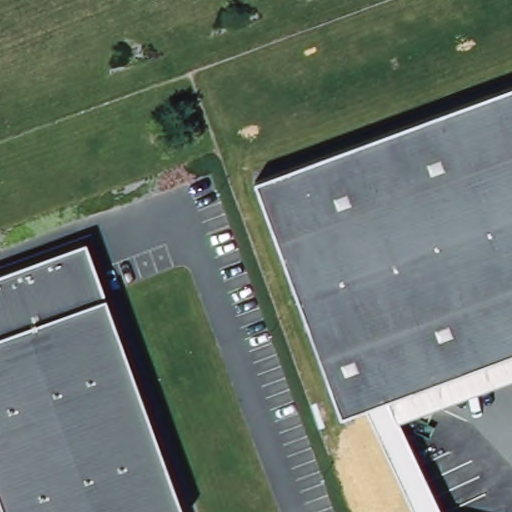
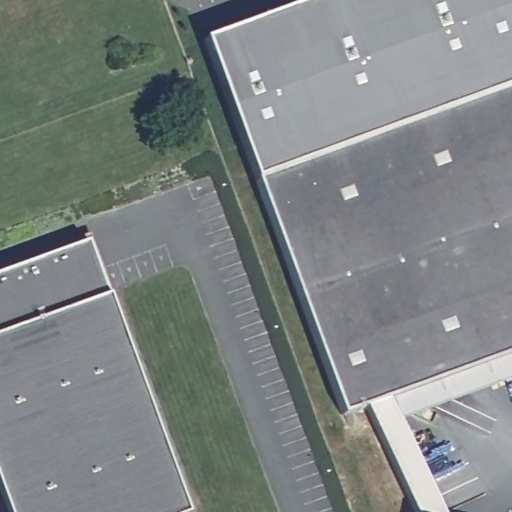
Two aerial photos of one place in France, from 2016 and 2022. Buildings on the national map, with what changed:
new [(203,39),(309,0),(512,0),(512,85),(255,180),(203,39)]
unchanged [(251,181),(512,85),(512,352),(385,399),(337,417),(251,181)]
unchanged [(88,254),(184,512),(4,512),(0,500),(0,287),(88,254)]
unchanged [(512,379),(394,422),(385,399),(512,352),(512,379)]
unchanged [(394,422),(398,421),(442,512),(415,512),(366,406),(385,399),(394,422)]

